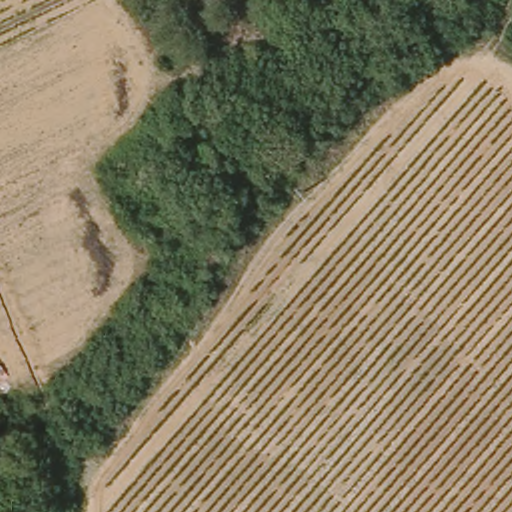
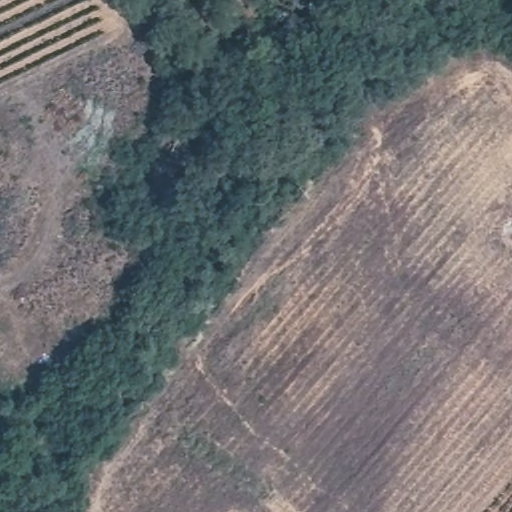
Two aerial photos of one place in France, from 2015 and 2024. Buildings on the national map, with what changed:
[]

